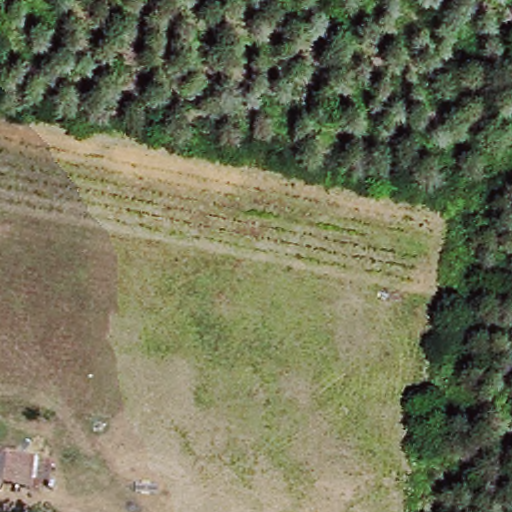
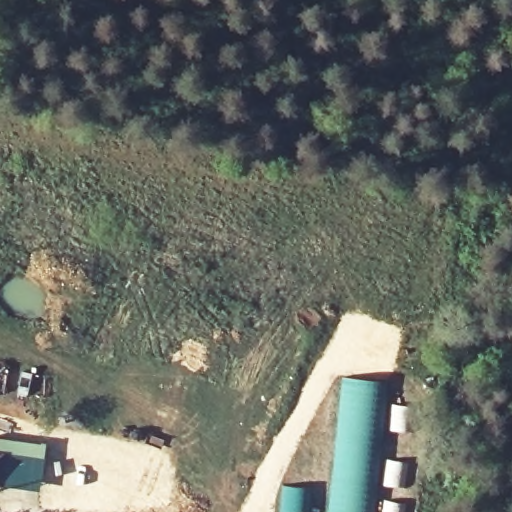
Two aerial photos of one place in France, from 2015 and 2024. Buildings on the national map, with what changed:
new [(341,377),(387,382),(376,475),(373,475),(366,512),(327,512),(341,377)]
unchanged [(2,487),(1,492),(0,492),(0,456),(35,462),(38,493),(2,487)]
new [(281,486),(307,488),(305,512),(278,512),(281,486)]

